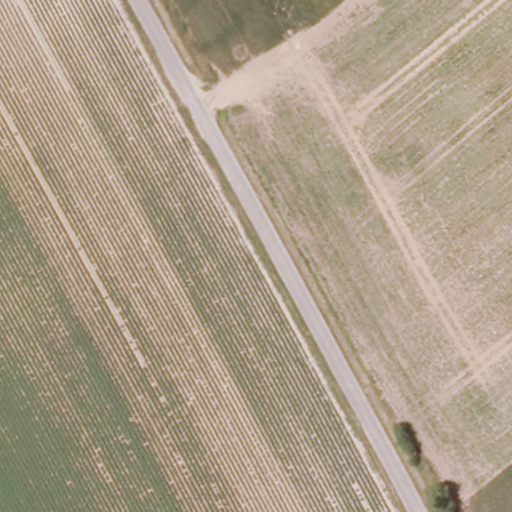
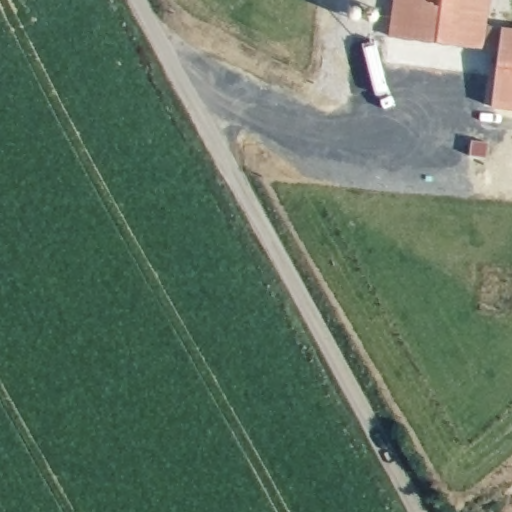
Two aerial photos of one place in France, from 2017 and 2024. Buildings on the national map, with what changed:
new [(512,31),(512,112),(494,110),(501,54),(392,40),(397,0),(486,0),(483,27),(512,31)]

